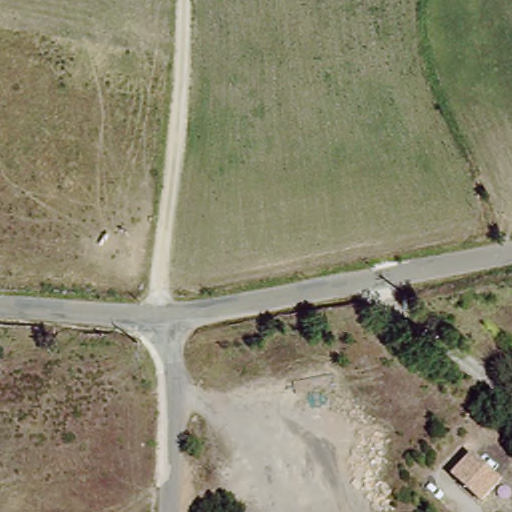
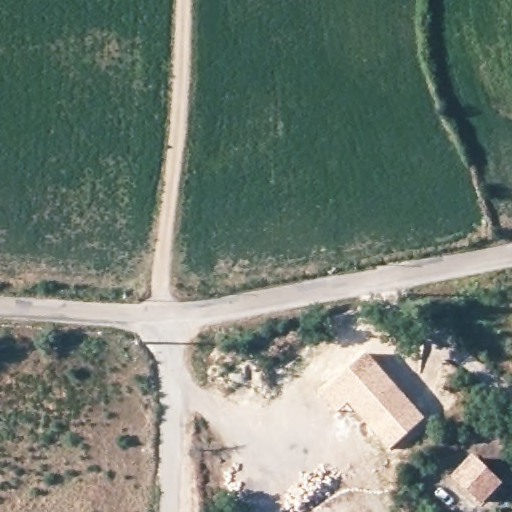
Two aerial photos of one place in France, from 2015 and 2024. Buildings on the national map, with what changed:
new [(368,350),(426,417),(389,449),(348,404),(336,413),(318,393),(368,350)]
unchanged [(472,455),(501,480),(481,504),(451,476),(472,455)]

